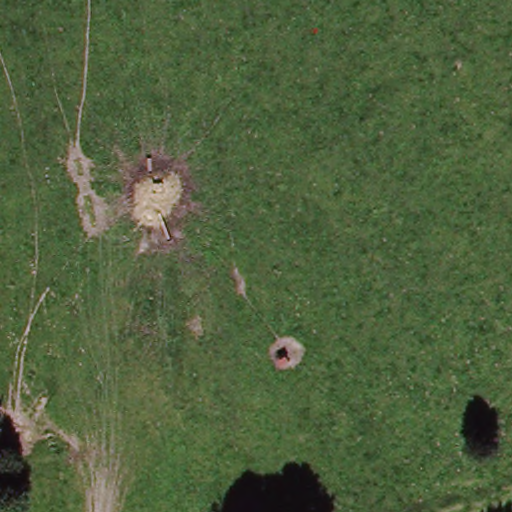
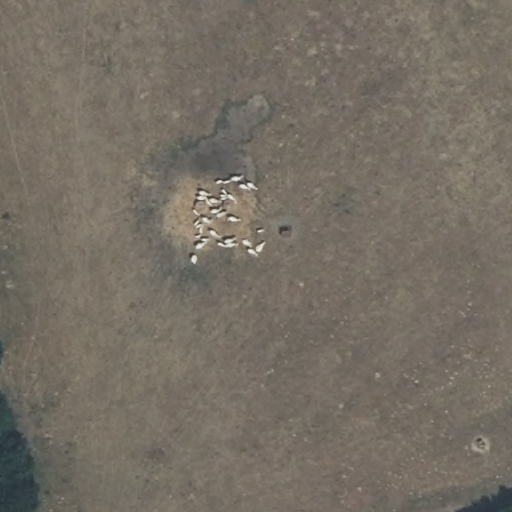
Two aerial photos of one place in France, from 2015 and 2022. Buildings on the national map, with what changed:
[]

